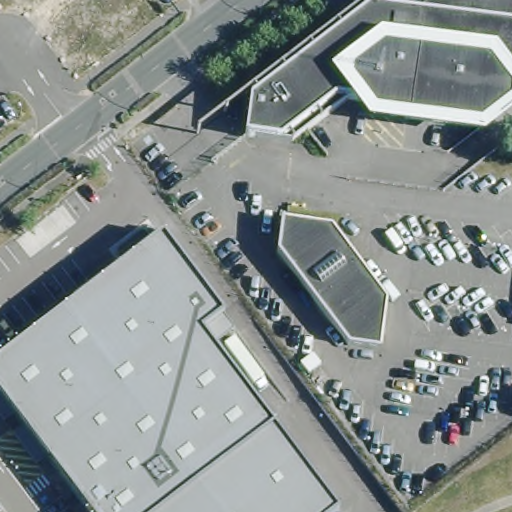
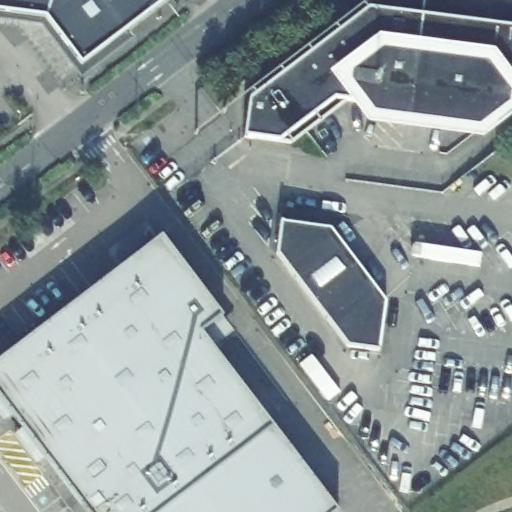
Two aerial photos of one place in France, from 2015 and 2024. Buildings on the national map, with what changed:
new [(81,65),(45,19),(0,12),(0,0),(167,0),(81,65)]
unchanged [(250,91),(245,85),(303,41),(312,44),(361,6),(362,0),(512,0),(512,96),(474,126),(385,114),(386,104),(337,97),(281,140),(240,134),(245,95),(250,91)]
unchanged [(330,229),(385,302),(378,352),(346,347),(275,255),(280,224),(330,229)]
unchanged [(201,334),(339,512),(89,512),(0,395),(0,364),(161,239),(221,316),(201,334)]

